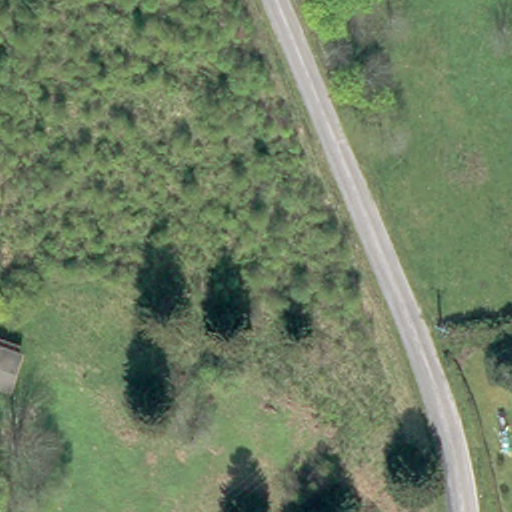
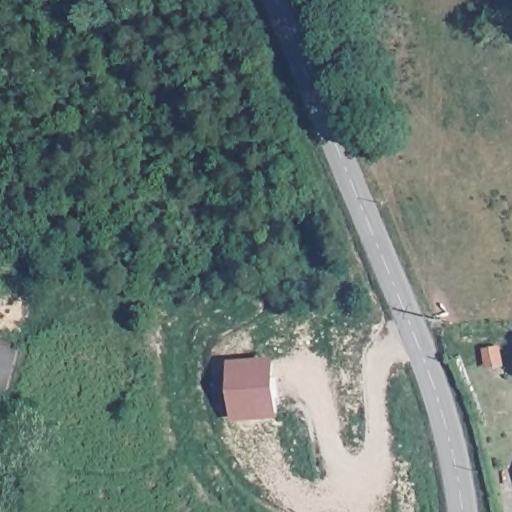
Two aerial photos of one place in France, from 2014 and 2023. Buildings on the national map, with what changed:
unchanged [(19,357),(9,386),(0,382),(0,350),(19,357)]
new [(228,360),(276,356),(281,416),(233,420),(228,360)]

